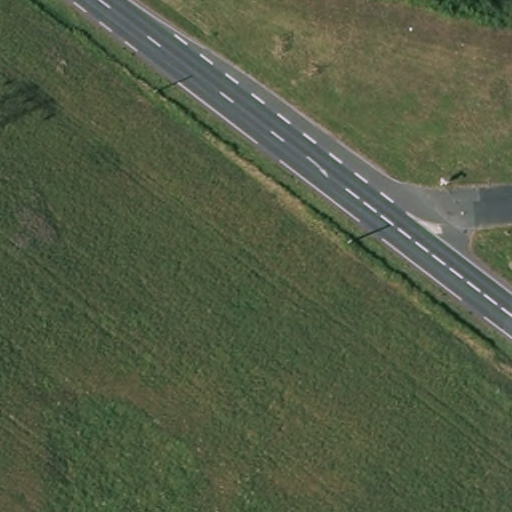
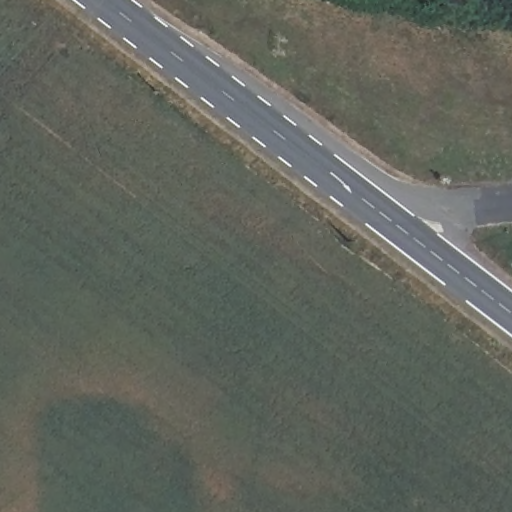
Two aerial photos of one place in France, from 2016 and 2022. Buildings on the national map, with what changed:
[]

